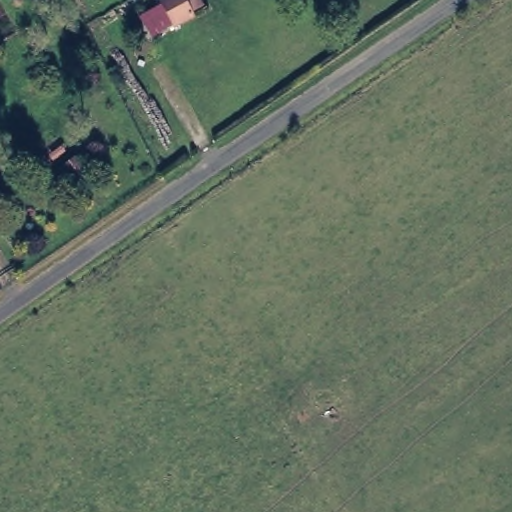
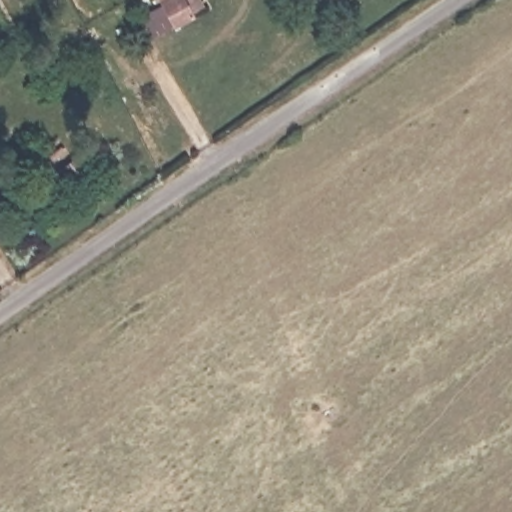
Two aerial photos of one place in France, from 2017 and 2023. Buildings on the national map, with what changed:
unchanged [(189,15),(190,17),(175,28),(159,4),(164,0),(198,0),(202,6),(189,15)]

